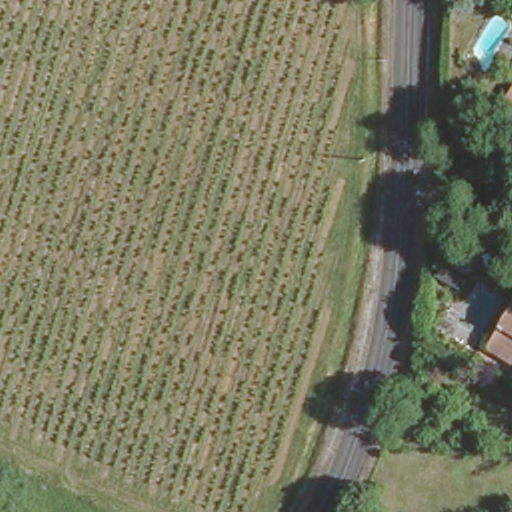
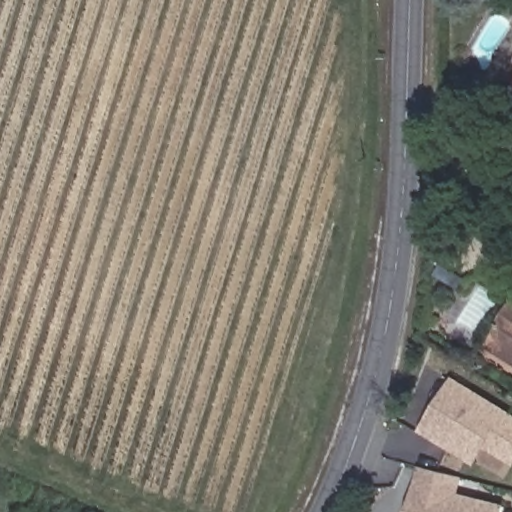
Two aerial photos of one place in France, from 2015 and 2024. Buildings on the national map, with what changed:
unchanged [(509,96),(512,92),(512,98),(509,96)]
unchanged [(493,332),(512,299),(512,359),(486,343),(493,332)]
new [(488,449),(478,465),(421,431),(453,375),(512,411),(512,464),(488,449)]
new [(465,476),(461,492),(508,503),(505,512),(408,512),(419,465),(465,476)]

